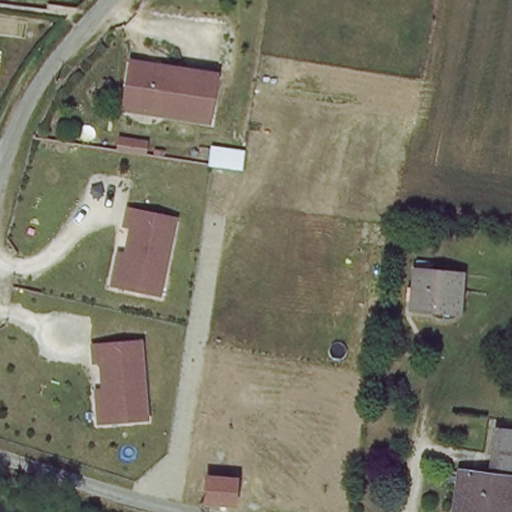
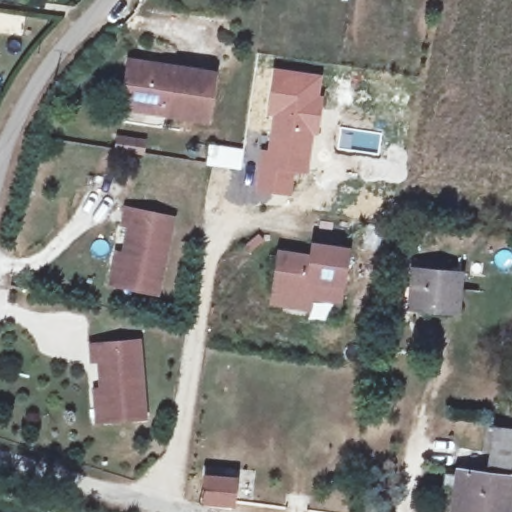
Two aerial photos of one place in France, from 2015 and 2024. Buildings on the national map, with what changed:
unchanged [(208,72),(201,119),(160,112),(162,102),(117,95),(123,59),(208,72)]
new [(258,147),(265,148),(270,116),(265,115),(272,67),(323,74),(320,95),(325,95),(318,135),(315,134),(309,174),(294,172),(290,196),(253,193),(258,147)]
new [(207,142),(244,147),(240,170),(204,164),(207,142)]
unchanged [(121,221),(115,220),(117,204),(165,211),(151,288),(111,281),(104,280),(110,249),(116,250),(121,221)]
new [(282,303),(263,300),(265,289),(270,250),(302,255),(305,243),(340,248),(332,299),(305,295),(302,306),(282,303)]
unchanged [(458,277),(452,315),(408,309),(414,271),(458,277)]
unchanged [(89,385),(96,385),(96,356),(89,357),(89,340),(136,339),(137,417),(96,417),(90,417),(89,385)]
unchanged [(449,511),(456,474),(486,478),(494,435),(512,437),(512,496),(510,512),(457,512),(449,511)]
unchanged [(201,478),(233,483),(231,505),(198,500),(201,478)]

